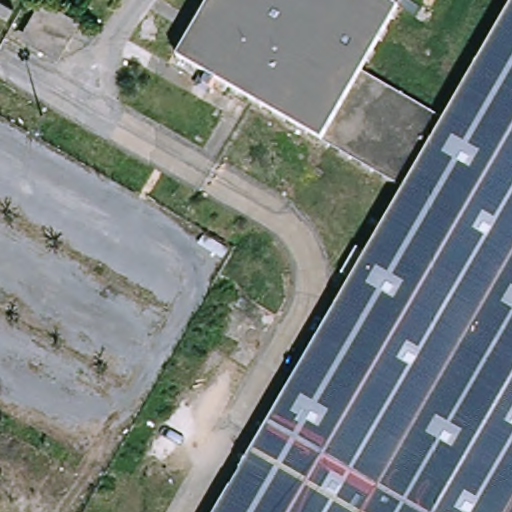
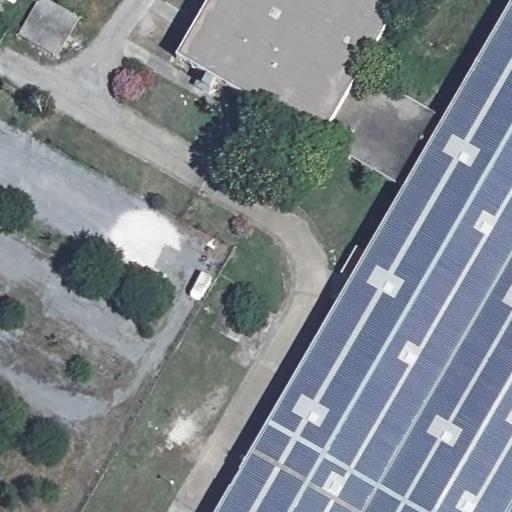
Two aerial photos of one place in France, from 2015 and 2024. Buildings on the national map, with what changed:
unchanged [(493,94),(468,140),(440,125),(403,187),(247,99),(174,56),(207,0),(404,0),(364,70),(444,116),(466,80),(493,94)]
unchanged [(512,249),(391,457),(375,485),(268,423),(403,187),(440,125),(468,140),(493,94),(466,80),(511,0),(512,0),(512,249)]
unchanged [(33,32),(40,21),(35,18),(45,4),(75,24),(65,39),(62,37),(55,47),(33,32)]
unchanged [(391,457),(512,249),(512,500),(505,512),(421,512),(375,485),(391,457)]
unchanged [(221,512),(218,510),(268,423),(375,485),(360,512),(221,512)]
unchanged [(421,512),(360,512),(375,485),(421,512)]
unchanged [(512,512),(505,512),(512,500),(512,512)]
unchanged [(217,512),(218,510),(221,512),(217,512)]

